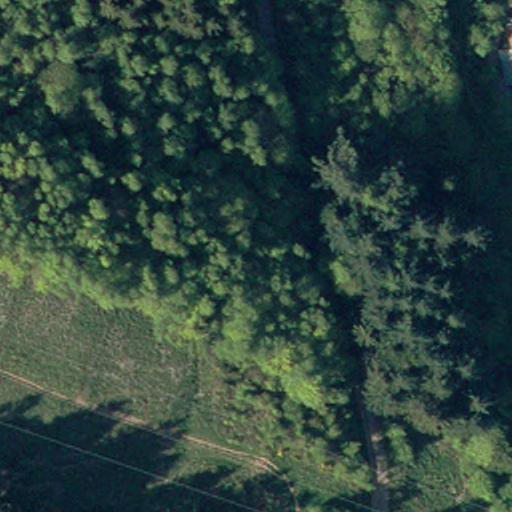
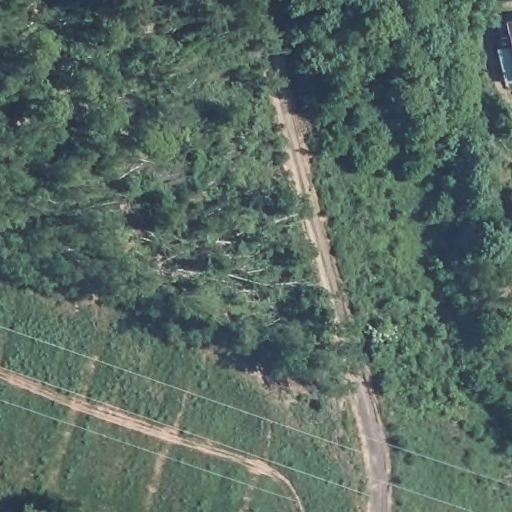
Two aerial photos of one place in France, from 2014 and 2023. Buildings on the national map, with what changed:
unchanged [(509,29),(512,28),(512,40),(509,29)]

